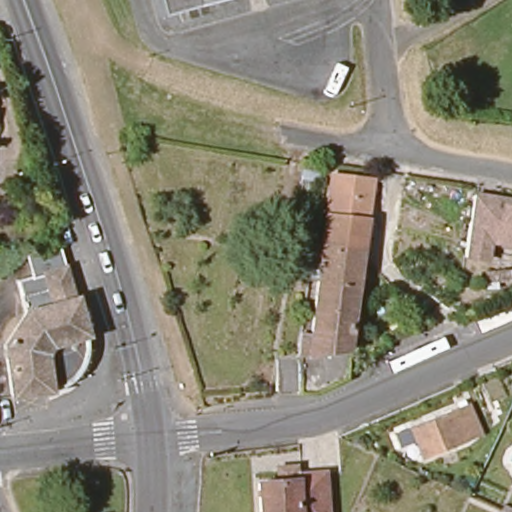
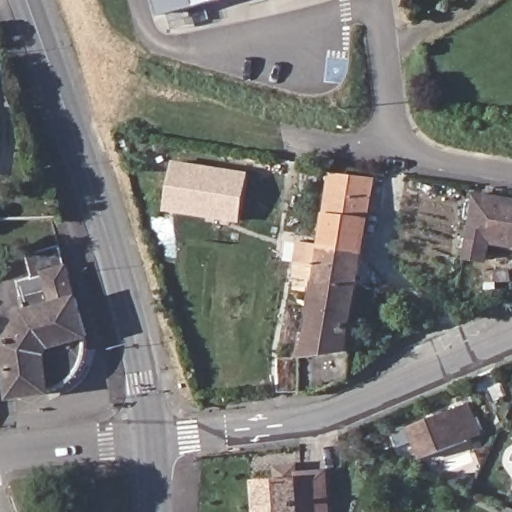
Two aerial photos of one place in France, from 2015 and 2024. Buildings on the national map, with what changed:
unchanged [(182,18),(176,0),(241,0),(182,18)]
new [(174,160),(249,172),(241,222),(166,211),(174,160)]
unchanged [(312,305),(323,306),(330,251),(319,250),(320,249),(307,247),(311,215),(323,217),(330,173),(375,179),(371,223),(366,256),(357,320),(362,320),(360,351),(330,365),(311,365),(311,362),(303,363),(287,366),(290,330),(308,328),(312,305)]
unchanged [(463,255),(467,237),(474,194),(512,201),(512,244),(488,240),(485,259),(463,255)]
unchanged [(17,277),(30,275),(28,257),(61,253),(80,301),(75,303),(72,304),(63,272),(51,276),(42,278),(51,310),(49,311),(24,318),(17,277)]
unchanged [(84,349),(84,355),(83,361),(82,367),(79,372),(76,378),(72,383),(68,387),(63,390),(58,393),(52,396),(10,401),(3,349),(13,334),(24,318),(49,311),(51,310),(42,278),(51,276),(63,272),(72,304),(75,303),(75,305),(85,341),(82,342),(84,349)]
unchanged [(508,395),(494,401),(482,376),(497,370),(508,395)]
unchanged [(418,426),(469,405),(480,434),(469,440),(470,442),(462,444),(423,460),(416,442),(410,429),(418,426)]
unchanged [(295,472),(296,481),(324,479),(327,512),(260,512),(257,489),(276,488),(275,474),(295,472)]
new [(504,504),(512,508),(512,512),(504,512),(502,511),(504,504)]

